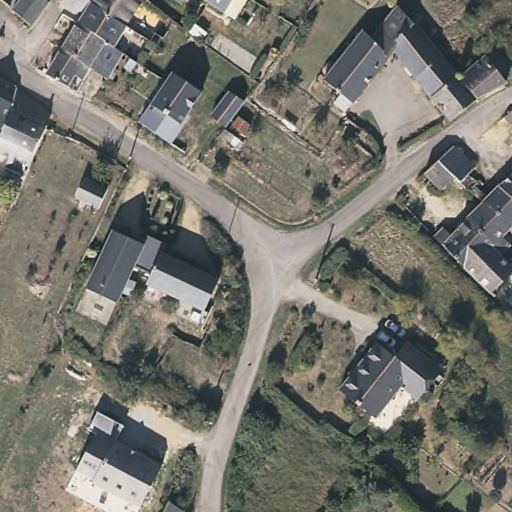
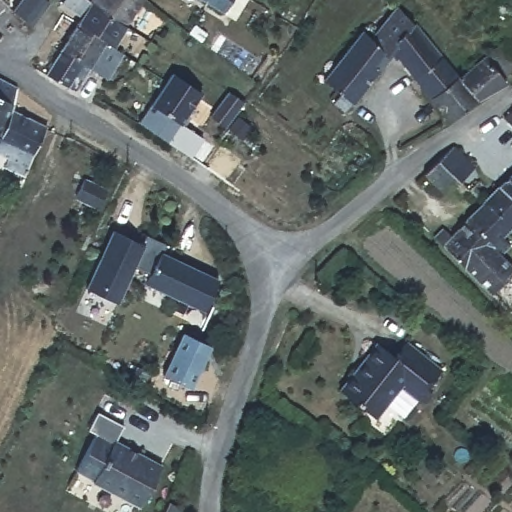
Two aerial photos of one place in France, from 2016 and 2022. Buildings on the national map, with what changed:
unchanged [(47,3),(28,26),(9,10),(17,0),(42,0),(47,3)]
unchanged [(77,18),(56,3),(59,0),(84,0),(87,2),(120,25),(123,27),(109,48),(73,24),(77,18)]
unchanged [(88,0),(138,0),(120,25),(87,2),(88,0)]
unchanged [(220,16),(193,0),(241,0),(244,2),(231,23),(220,16)]
unchanged [(334,103),(341,94),(324,81),(350,47),(364,29),(372,38),(398,5),(414,23),(416,22),(430,39),(442,55),(416,79),(393,51),(389,56),(378,70),(345,112),(334,103)]
unchanged [(71,75),(67,82),(71,84),(67,89),(41,74),(57,49),(73,24),(109,48),(119,54),(103,79),(86,68),(79,80),(71,75)]
unchanged [(486,56),(500,46),(512,60),(512,69),(502,77),(507,83),(478,99),(458,76),(459,75),(486,56)]
unchanged [(451,122),(416,79),(442,55),(459,75),(458,76),(478,99),(451,122)]
unchanged [(165,81),(171,73),(201,92),(180,124),(183,125),(171,144),(138,123),(150,104),(165,81)]
unchanged [(1,138),(0,138),(0,77),(17,86),(12,108),(1,138)]
unchanged [(231,94),(246,103),(225,126),(212,115),(231,94)]
unchanged [(48,125),(25,176),(6,167),(10,158),(0,153),(0,140),(1,139),(1,138),(12,108),(48,125)]
unchanged [(512,109),(512,123),(505,116),(512,109)]
unchanged [(235,137),(228,147),(216,138),(224,128),(235,137)]
unchanged [(1,138),(1,139),(0,140),(0,138),(1,138)]
unchanged [(421,173),(434,159),(449,145),(471,166),(464,174),(475,181),(466,189),(463,188),(451,176),(437,189),(421,173)]
unchanged [(503,235),(511,243),(501,253),(467,219),(483,202),(493,190),(500,185),(512,174),(512,230),(510,228),(503,235)]
unchanged [(108,189),(99,207),(76,196),(85,178),(108,189)]
unchanged [(512,271),(491,292),(449,250),(434,235),(444,226),(452,234),(467,219),(501,253),(512,264),(512,271)]
unchanged [(87,284),(112,229),(141,243),(145,233),(165,243),(161,252),(217,278),(203,309),(145,282),(149,272),(132,265),(116,298),(87,284)]
new [(181,331),(214,347),(194,390),(161,372),(181,331)]
unchanged [(397,387),(372,416),(336,388),(351,370),(354,371),(362,361),(359,359),(373,342),(391,355),(403,340),(439,368),(422,389),(414,399),(397,387)]
unchanged [(109,442),(110,440),(158,464),(136,507),(89,482),(90,479),(73,470),(92,433),(109,442)]
unchanged [(183,512),(166,512),(171,501),(184,511),(183,512)]

